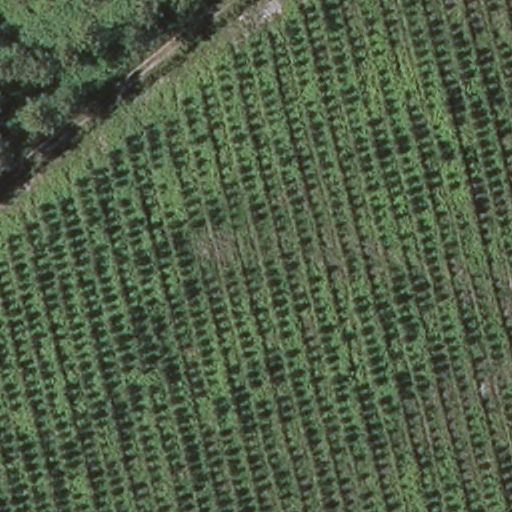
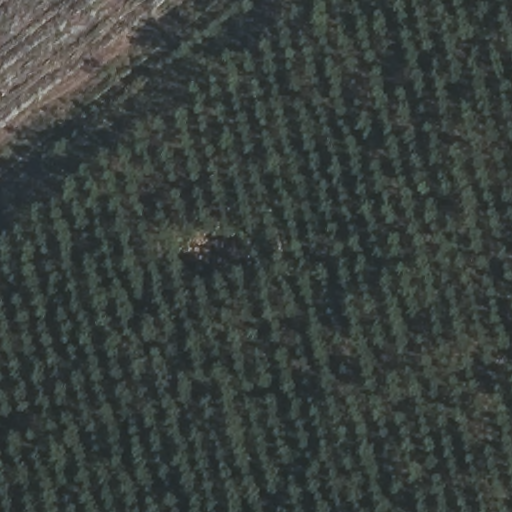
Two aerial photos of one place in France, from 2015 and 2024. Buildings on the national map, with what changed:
[]

